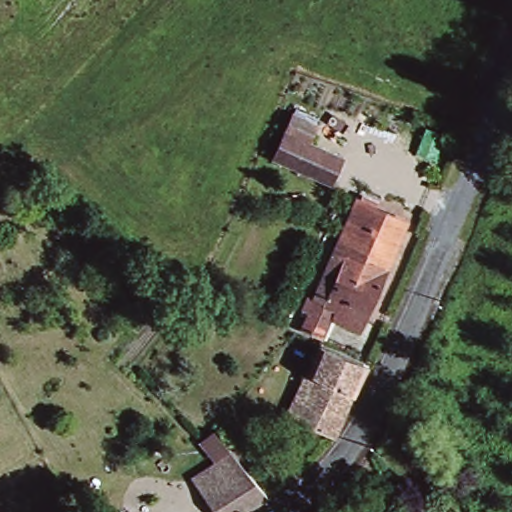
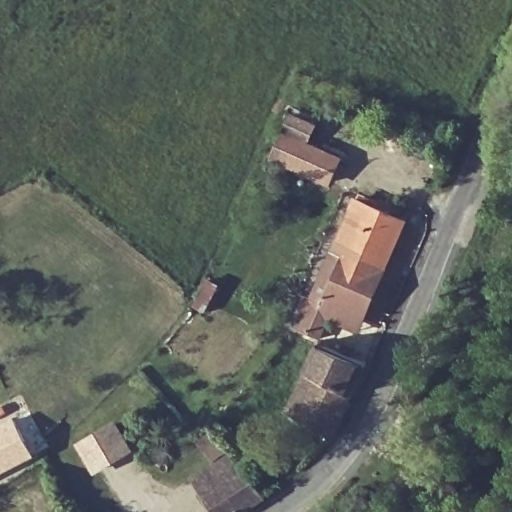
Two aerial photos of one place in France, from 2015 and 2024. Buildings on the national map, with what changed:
unchanged [(308,135),(341,151),(327,178),(270,152),(282,124),(295,102),(317,113),(308,135)]
unchanged [(406,217),(356,324),(325,316),(316,332),(297,322),(307,290),(351,192),(406,217)]
unchanged [(299,366),(313,337),(357,357),(343,391),(299,366)]
unchanged [(326,428),(280,403),(299,366),(343,391),(326,428)]
new [(15,416),(36,455),(0,474),(0,424),(15,416)]
new [(120,422),(135,448),(99,468),(85,442),(120,422)]
unchanged [(217,512),(197,485),(187,471),(223,444),(235,458),(262,492),(231,512),(217,512)]
new [(466,512),(446,512),(462,505),(466,512)]

